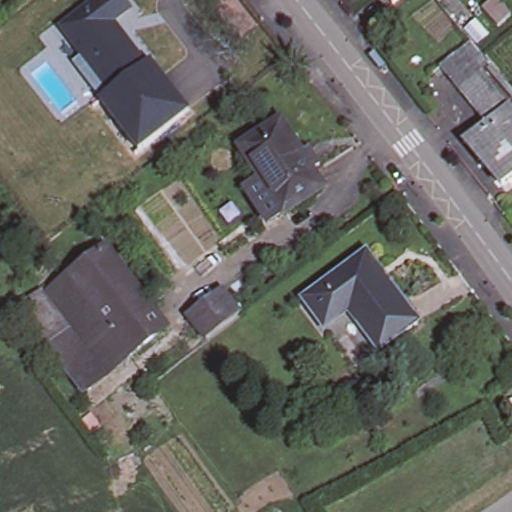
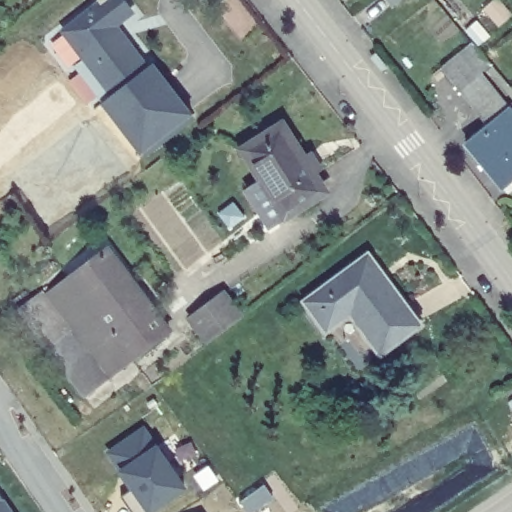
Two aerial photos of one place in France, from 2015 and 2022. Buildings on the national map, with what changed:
unchanged [(116,31),(148,72),(115,98),(66,35),(103,6),(110,0),(111,0),(120,0),(133,16),(116,31)]
unchanged [(390,0),(404,0),(396,7),(390,0)]
unchanged [(502,189),(464,143),(485,125),(470,109),(437,70),(460,52),(493,91),(507,108),(512,115),(512,181),(502,189)]
unchanged [(156,65),(194,118),(141,158),(99,107),(115,98),(148,72),(156,65)]
unchanged [(254,184),(268,173),(277,165),(256,140),(284,119),(331,177),(294,204),(279,215),(254,184)]
unchanged [(168,329),(133,356),(73,279),(109,250),(168,329)]
unchanged [(417,321),(380,351),(349,313),(324,333),(304,308),(364,259),(417,321)]
unchanged [(133,356),(85,393),(26,315),(73,279),(133,356)]
unchanged [(245,320),(213,344),(193,319),(223,294),(245,320)]
new [(145,427),(186,492),(157,512),(130,512),(121,499),(133,491),(105,454),(145,427)]
new [(0,489),(16,512),(0,512),(0,489)]

